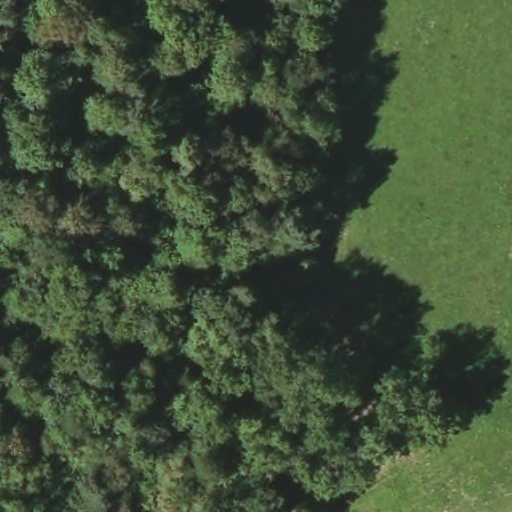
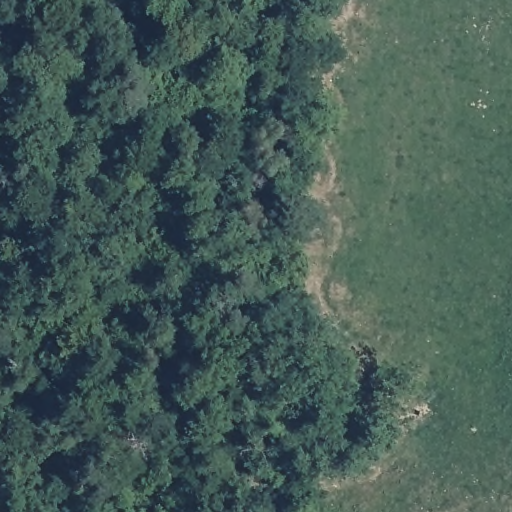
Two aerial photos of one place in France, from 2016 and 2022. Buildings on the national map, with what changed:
[]

